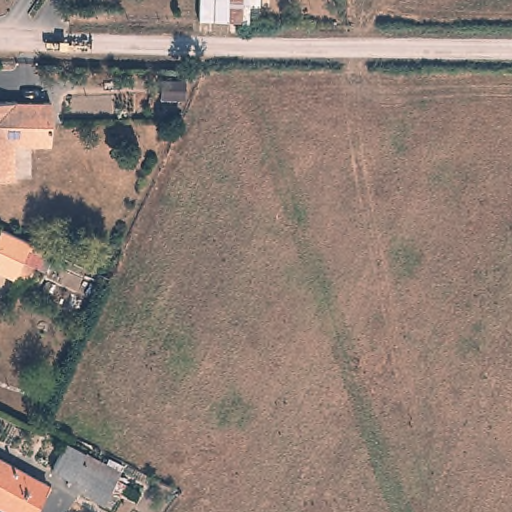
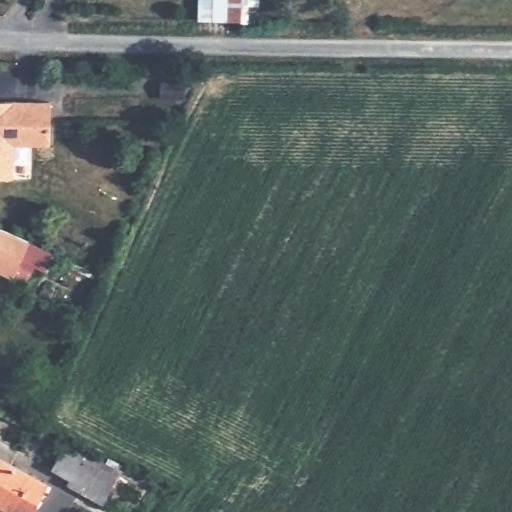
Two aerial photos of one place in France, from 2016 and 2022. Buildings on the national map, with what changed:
unchanged [(260,26),(202,25),(204,0),(261,0),(260,26)]
unchanged [(12,140),(12,175),(0,175),(0,98),(51,99),(50,135),(50,141),(12,140)]
unchanged [(0,275),(0,255),(9,236),(37,250),(21,285),(0,275)]
unchanged [(102,497),(58,476),(70,450),(114,472),(102,497)]
unchanged [(32,512),(15,512),(0,505),(0,463),(45,487),(32,512)]

